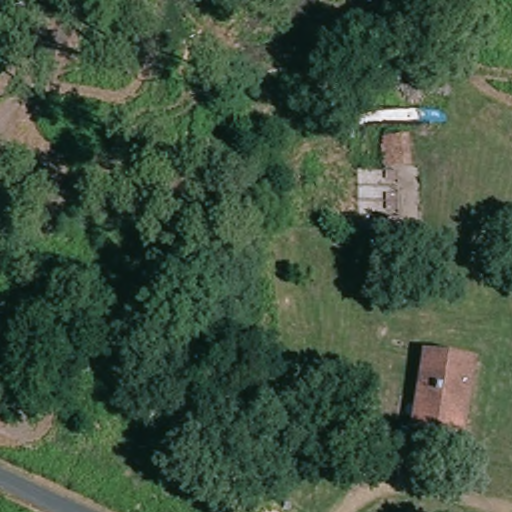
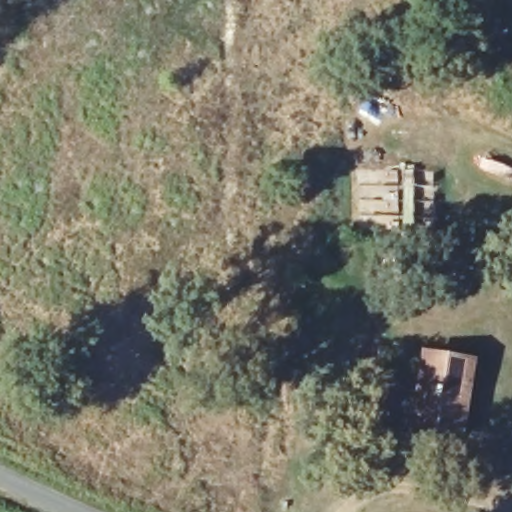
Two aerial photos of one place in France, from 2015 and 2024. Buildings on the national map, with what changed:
unchanged [(417,161),(407,162),(407,138),(418,139),(417,161)]
unchanged [(427,357),(473,364),(461,433),(412,424),(427,357)]

